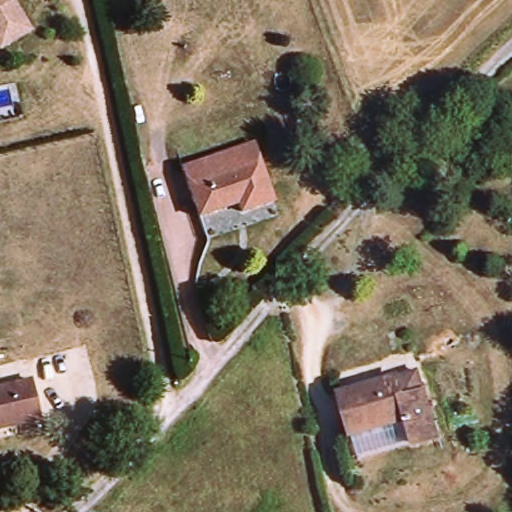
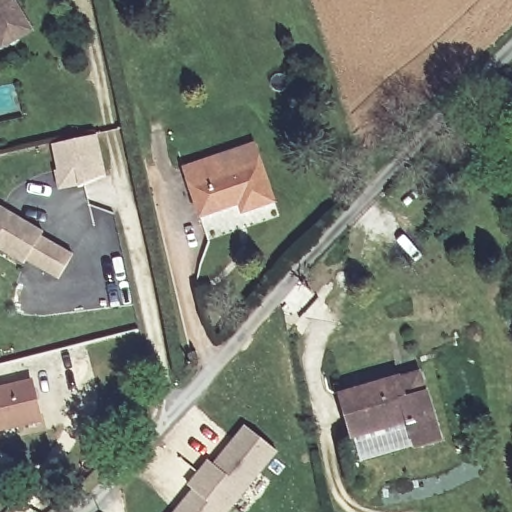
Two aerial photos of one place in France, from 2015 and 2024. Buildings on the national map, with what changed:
unchanged [(31,32),(2,50),(0,46),(0,0),(9,0),(14,3),(31,32)]
new [(56,170),(50,146),(94,137),(103,181),(77,186),(76,183),(60,186),(56,170)]
unchanged [(182,171),(253,146),(260,163),(188,187),(182,171)]
unchanged [(260,163),(273,205),(241,216),(238,207),(199,220),(188,187),(260,163)]
new [(23,264),(0,251),(0,207),(43,233),(41,236),(72,254),(55,280),(25,261),(23,264)]
unchanged [(418,449),(411,423),(357,439),(345,397),(402,381),(423,375),(430,398),(442,442),(418,449)]
unchanged [(0,433),(0,392),(31,384),(40,418),(40,423),(20,428),(0,433)]
new [(187,486),(206,461),(211,465),(243,427),(273,451),(224,512),(174,512),(191,490),(187,486)]

